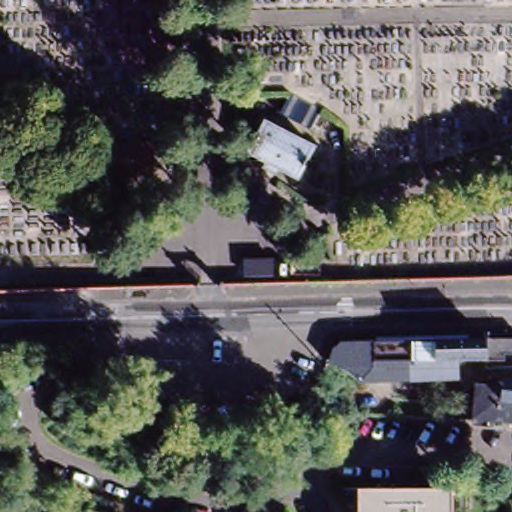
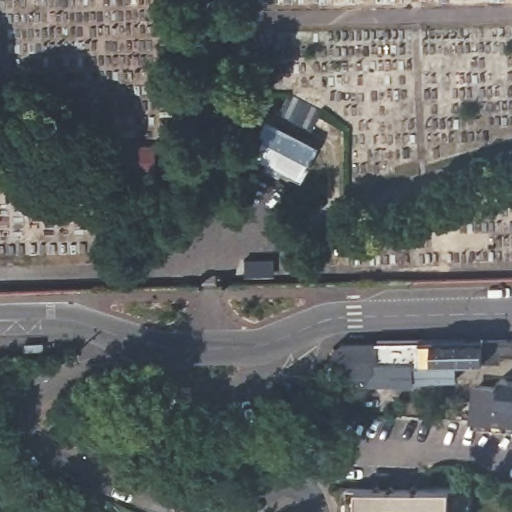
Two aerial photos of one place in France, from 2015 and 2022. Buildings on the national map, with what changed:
unchanged [(309,132),(279,115),(289,93),(321,110),(309,132)]
unchanged [(262,170),(266,162),(248,154),(263,124),(310,149),(295,178),(278,169),(274,175),(262,170)]
unchanged [(151,149),(149,174),(110,173),(111,147),(151,149)]
unchanged [(372,382),(355,383),(346,375),(343,374),(339,371),(324,365),(326,362),(327,358),(329,350),(334,345),(338,343),(341,343),(344,343),(369,342),(428,341),(484,340),(512,340),(512,356),(502,355),(502,362),(483,362),(456,362),(457,380),(407,381),(372,382)]
unchanged [(16,348),(0,349),(0,344),(16,344),(16,348)]
unchanged [(474,393),(479,393),(480,387),(499,390),(501,380),(512,381),(512,423),(471,419),(474,393)]
unchanged [(344,401),(336,395),(344,381),(353,387),(344,401)]
unchanged [(465,512),(337,512),(337,491),(371,490),(374,485),(378,490),(385,490),(389,485),(394,490),(408,490),(411,485),(415,490),(464,490),(465,512)]

